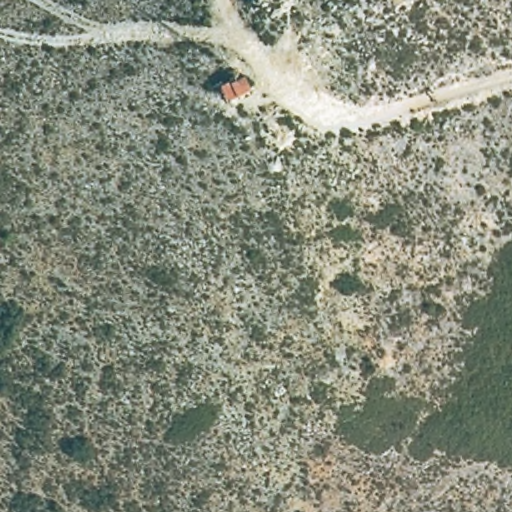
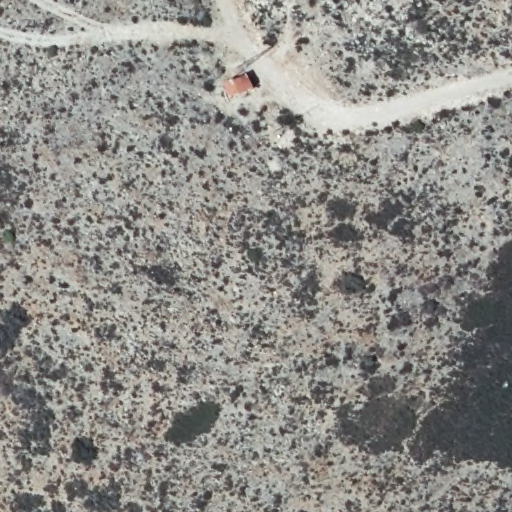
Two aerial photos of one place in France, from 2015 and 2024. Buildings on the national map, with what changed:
unchanged [(248,72),(253,84),(224,94),(217,81),(248,72)]

